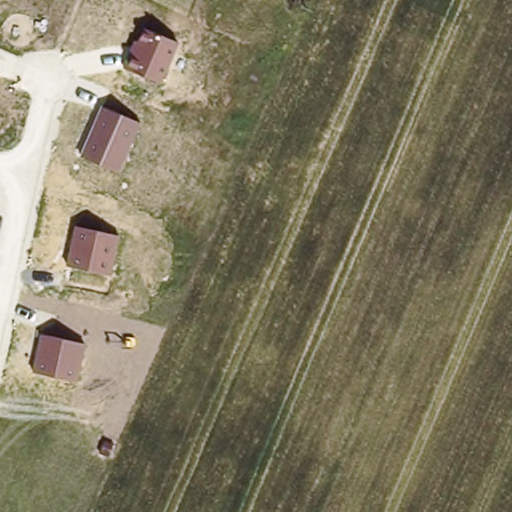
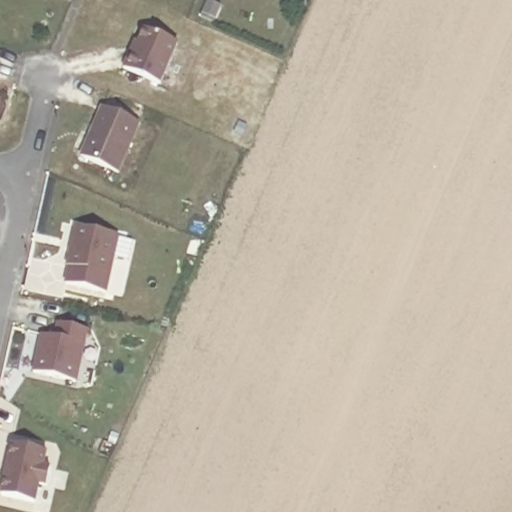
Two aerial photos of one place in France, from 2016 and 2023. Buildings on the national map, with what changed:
unchanged [(125,68),(143,26),(180,43),(162,84),(125,68)]
unchanged [(82,156),(102,106),(142,123),(120,173),(82,156)]
unchanged [(65,266),(74,226),(121,237),(113,276),(65,266)]
unchanged [(34,370),(40,335),(87,346),(78,380),(34,370)]
new [(12,444),(46,452),(42,466),(50,468),(45,485),(38,484),(34,503),(0,495),(12,444)]

